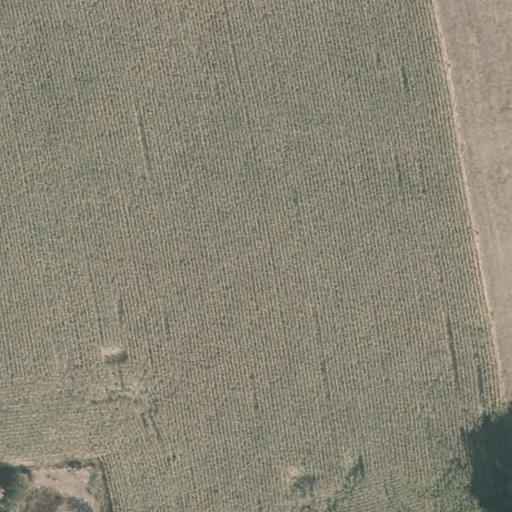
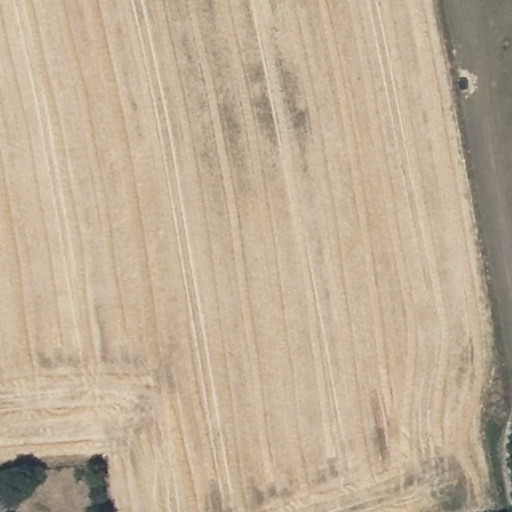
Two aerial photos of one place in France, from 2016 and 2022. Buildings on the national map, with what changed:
[]

